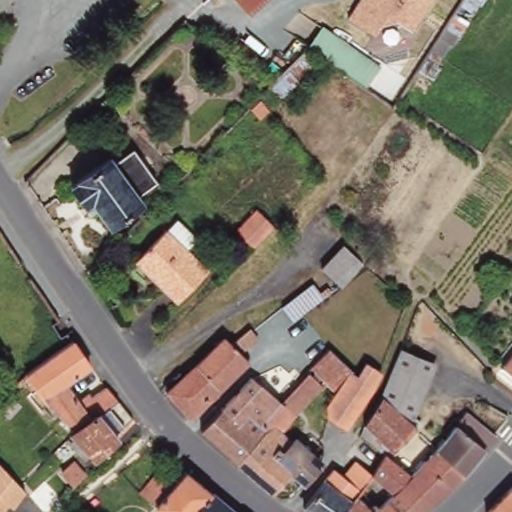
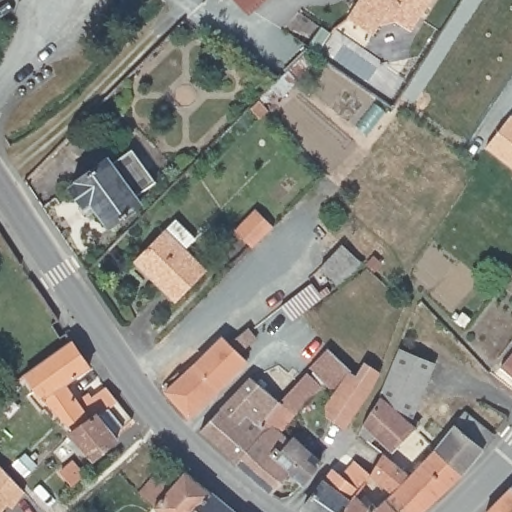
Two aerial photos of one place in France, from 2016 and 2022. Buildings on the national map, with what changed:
unchanged [(244,13),(232,0),(259,0),(244,13)]
unchanged [(410,32),(397,22),(383,24),(375,35),(348,18),(360,0),(432,0),(410,32)]
unchanged [(381,68),(367,89),(326,60),(280,103),(266,88),(310,47),(323,27),(381,68)]
new [(512,113),(512,166),(487,147),(512,113)]
unchanged [(108,163),(125,151),(148,184),(132,196),(136,202),(104,227),(85,202),(78,206),(65,187),(104,158),(108,163)]
unchanged [(265,219),(271,225),(249,247),(247,245),(232,229),(253,208),(265,219)]
unchanged [(193,245),(183,255),(202,273),(172,303),(133,262),(172,224),(193,245)]
unchanged [(355,255),(358,257),(355,260),(337,281),(316,263),(336,240),(345,247),(355,255)]
unchanged [(314,288),(321,283),(326,291),(289,319),(278,303),(289,293),(307,279),(314,288)]
unchanged [(250,328),(254,332),(260,337),(242,355),(250,363),(223,387),(189,419),(179,409),(178,411),(159,390),(163,387),(177,373),(182,378),(224,337),(232,345),(250,328)]
unchanged [(28,405),(22,398),(30,391),(21,378),(51,356),(68,343),(84,367),(62,385),(77,406),(99,389),(111,404),(70,435),(35,400),(28,405)]
unchanged [(512,349),(512,383),(496,366),(512,349)]
unchanged [(309,370),(325,351),(356,377),(366,365),(379,376),(373,392),(343,432),(327,415),(328,405),(334,392),(309,370)]
unchanged [(412,434),(406,441),(404,439),(387,455),(371,440),(366,447),(356,439),(354,437),(358,430),(359,429),(357,427),(378,402),(397,352),(415,359),(416,359),(432,366),(427,377),(425,383),(412,417),(410,422),(418,428),(412,434)]
unchanged [(259,427),(276,407),(303,376),(316,388),(277,433),(316,468),(297,492),(296,491),(282,479),(269,495),(268,496),(234,465),(265,433),(259,427)]
unchanged [(247,381),(276,407),(259,427),(265,433),(234,465),(220,453),(205,439),(198,433),(247,381)]
unchanged [(129,421),(112,438),(114,440),(90,463),(66,439),(70,435),(111,404),(129,421)]
unchanged [(490,439),(456,476),(432,453),(433,452),(463,416),(490,439)]
unchanged [(383,462),(402,478),(432,453),(456,476),(434,500),(437,503),(427,512),(390,512),(380,502),(385,496),(377,490),(367,481),(374,472),(383,462)]
unchanged [(334,478),(346,464),(362,476),(362,477),(351,491),(344,500),(335,512),(297,512),(325,471),(326,472),(334,478)]
unchanged [(24,494),(12,511),(7,507),(4,512),(0,512),(0,468),(24,494)]
unchanged [(196,512),(158,512),(156,510),(141,497),(153,483),(168,496),(188,473),(211,495),(196,512)]
unchanged [(512,483),(512,512),(484,512),(510,485),(512,483)]
unchanged [(364,506),(377,490),(385,496),(380,502),(390,512),(369,512),(370,511),(364,506)]
unchanged [(212,493),(235,512),(196,512),(211,495),(212,493)]
unchanged [(360,512),(335,512),(344,500),(360,512)]

